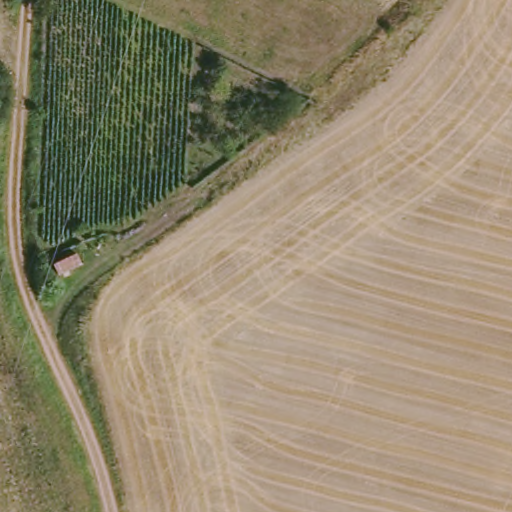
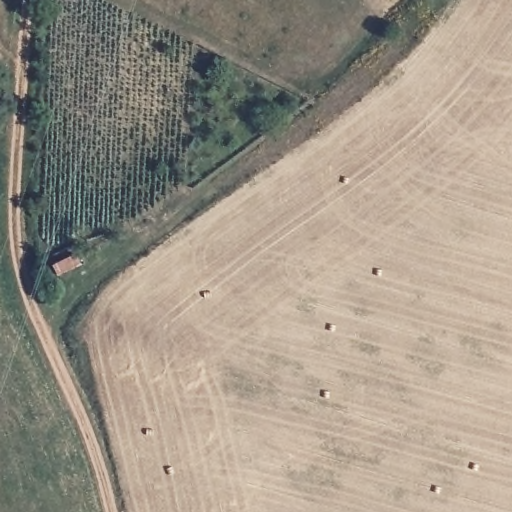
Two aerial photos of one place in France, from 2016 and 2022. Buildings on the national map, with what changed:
unchanged [(55,282),(48,262),(74,251),(81,266),(55,282)]

